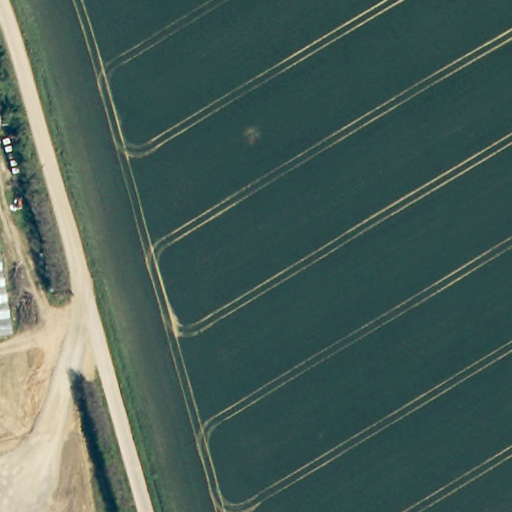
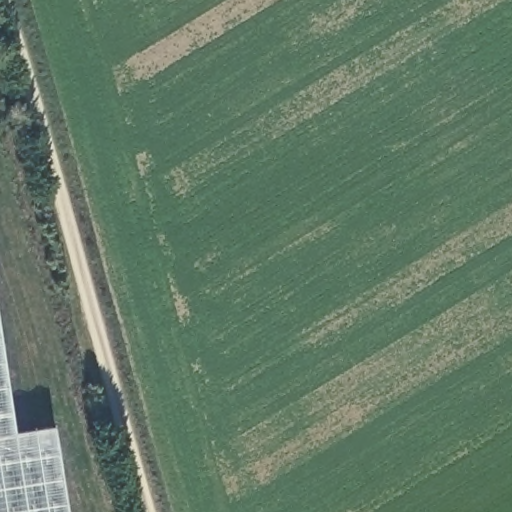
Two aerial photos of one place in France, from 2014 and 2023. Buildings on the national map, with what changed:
unchanged [(9,434),(0,436),(0,376),(9,434)]
new [(62,512),(0,512),(0,436),(48,428),(62,512)]

